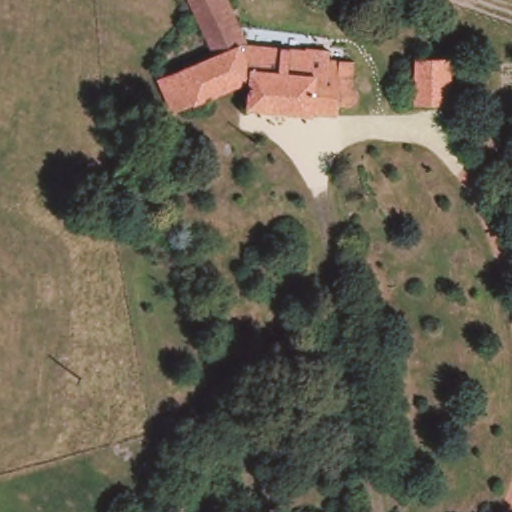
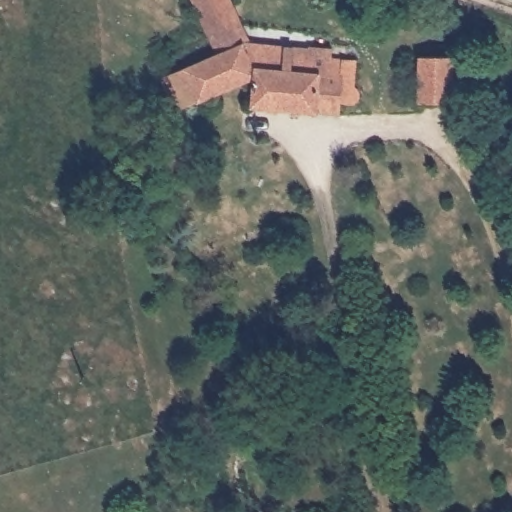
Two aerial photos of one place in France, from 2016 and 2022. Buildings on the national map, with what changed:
unchanged [(162,42),(191,29),(183,0),(229,0),(245,42),(332,56),(333,60),(354,63),(352,90),(361,98),(358,109),(349,108),(344,104),(341,118),(251,106),(251,81),(174,109),(159,73),(171,66),(162,42)]
unchanged [(422,104),(422,59),(455,59),(455,105),(422,104)]

